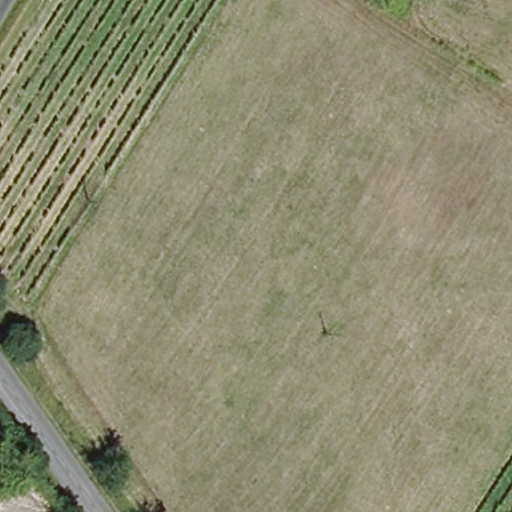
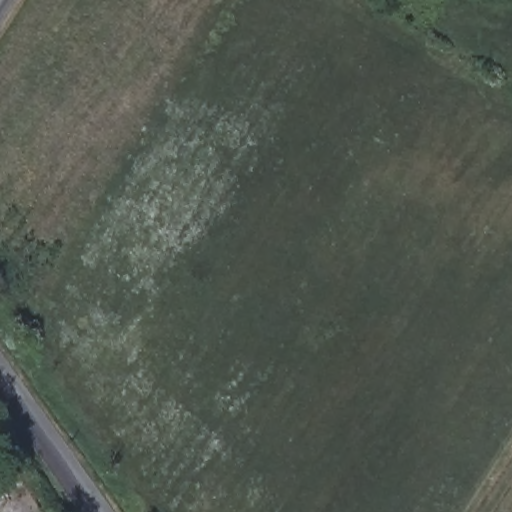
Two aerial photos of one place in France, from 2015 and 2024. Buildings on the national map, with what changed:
[]

